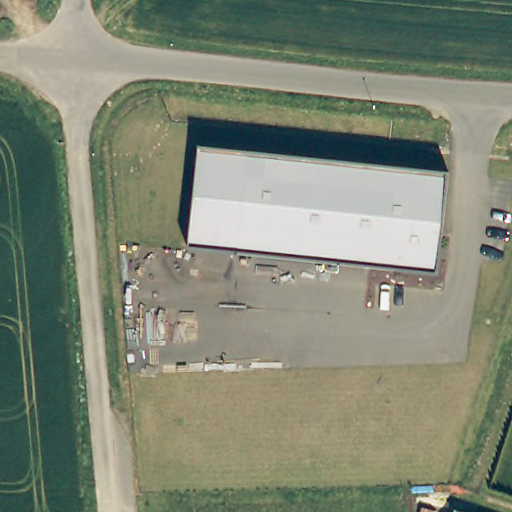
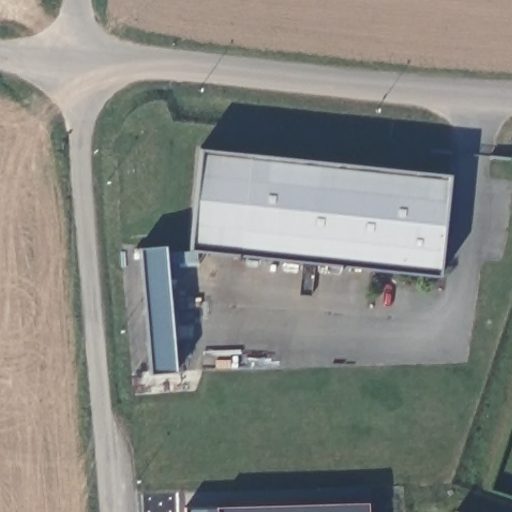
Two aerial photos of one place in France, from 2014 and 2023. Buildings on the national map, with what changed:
unchanged [(200,150),(448,175),(438,276),(189,250),(200,150)]
new [(139,248),(164,246),(175,370),(150,373),(139,248)]
new [(185,512),(185,508),(218,507),(367,501),(368,512),(185,512)]

